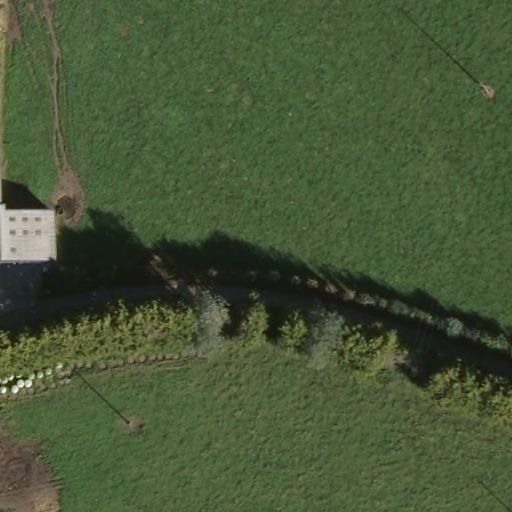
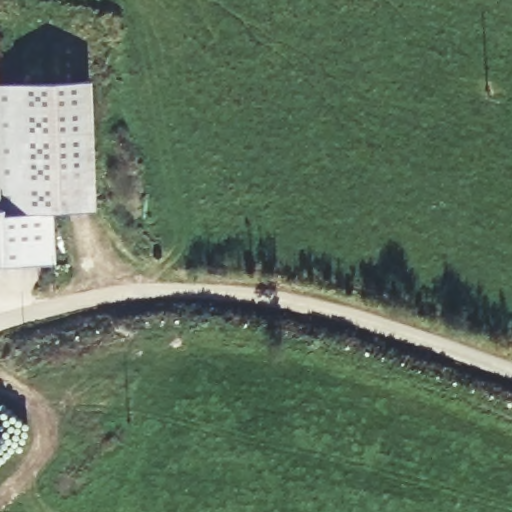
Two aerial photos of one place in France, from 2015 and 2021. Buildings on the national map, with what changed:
new [(91,82),(93,209),(56,210),(55,261),(0,264),(0,87),(91,82)]
demolished [(42,217),(42,272),(0,271),(0,216),(42,217)]

